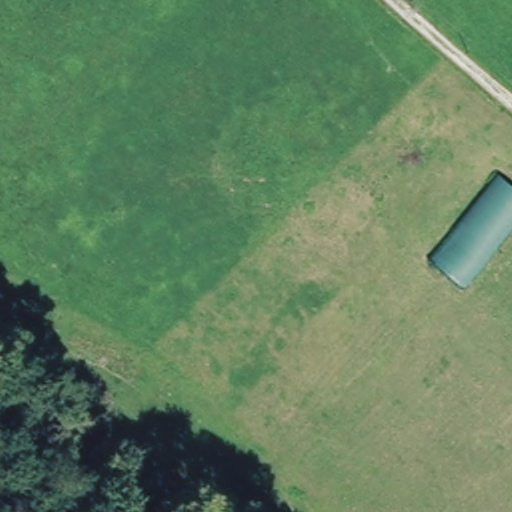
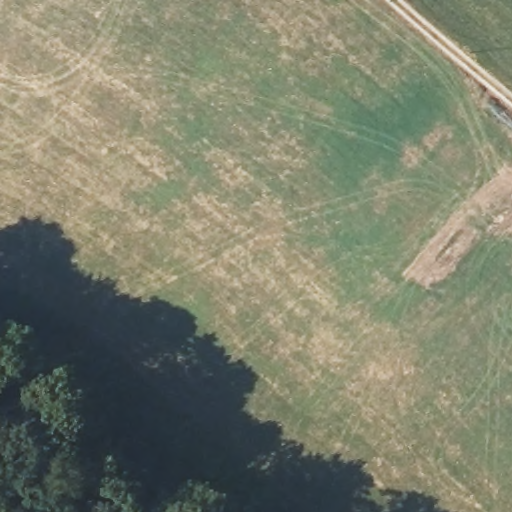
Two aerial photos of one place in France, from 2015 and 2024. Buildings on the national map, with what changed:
demolished [(512,185),(512,227),(464,287),(430,259),(496,171),(512,185)]

